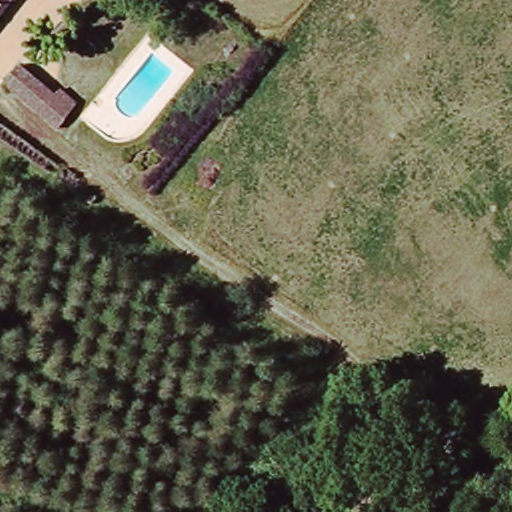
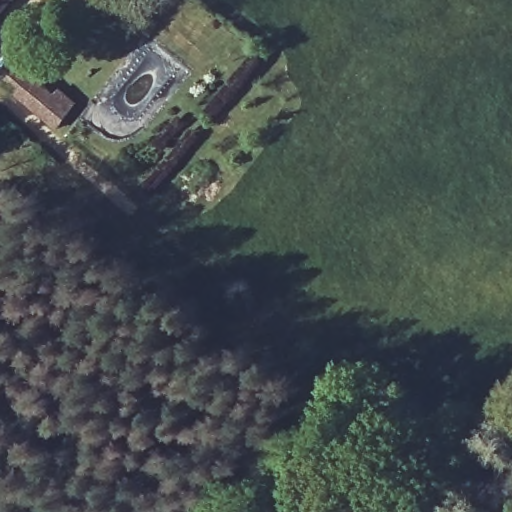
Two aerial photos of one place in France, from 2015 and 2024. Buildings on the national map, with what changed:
unchanged [(0,16),(0,0),(11,0),(0,16)]
unchanged [(16,1),(14,0),(16,0),(16,1)]
unchanged [(62,90),(77,104),(57,127),(6,84),(19,67),(55,98),(62,90)]

